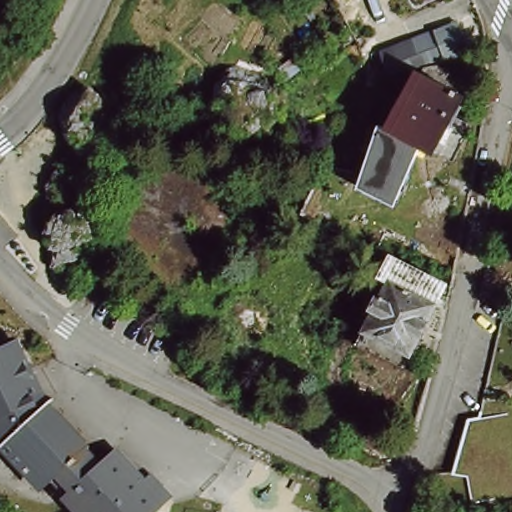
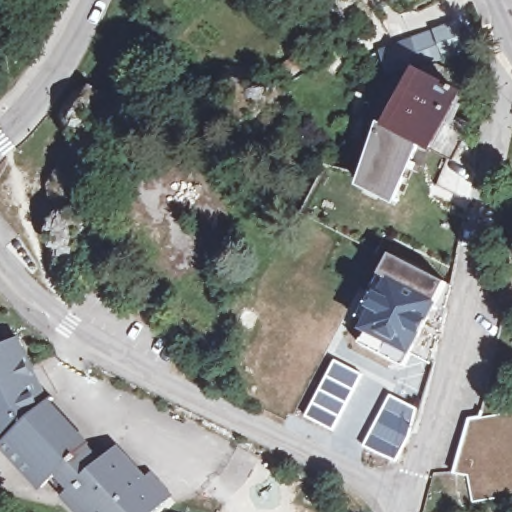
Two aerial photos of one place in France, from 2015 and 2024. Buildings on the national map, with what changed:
unchanged [(381,58),(454,29),(464,59),(387,81),(381,58)]
unchanged [(451,122),(471,132),(464,145),(453,165),(453,166),(443,161),(420,149),(418,147),(398,137),(389,132),(386,137),(383,136),(381,135),(373,131),(378,120),(395,88),(399,90),(404,81),(413,86),(414,83),(417,85),(421,77),(437,72),(446,77),(443,82),(450,86),(447,93),(461,102),(451,122)]
unchanged [(268,87),(256,132),(240,147),(211,142),(228,81),(268,87)]
unchanged [(383,136),(386,137),(389,132),(398,137),(418,147),(420,149),(392,207),(361,191),(381,135),(383,136)]
unchanged [(357,338),(364,324),(374,305),(371,303),(377,291),(381,292),(389,276),(379,270),(389,251),(449,282),(426,357),(410,348),(403,363),(357,338)]
unchanged [(72,490),(55,472),(36,488),(0,446),(0,442),(3,440),(0,436),(0,348),(14,342),(26,367),(28,380),(34,393),(38,392),(83,447),(100,465),(117,450),(162,501),(149,512),(73,512),(61,500),(72,490)]
new [(335,365),(357,371),(355,391),(333,419),(336,422),(332,427),(309,416),(330,379),(335,365)]
new [(416,412),(414,424),(395,461),(366,445),(392,399),(416,412)]

